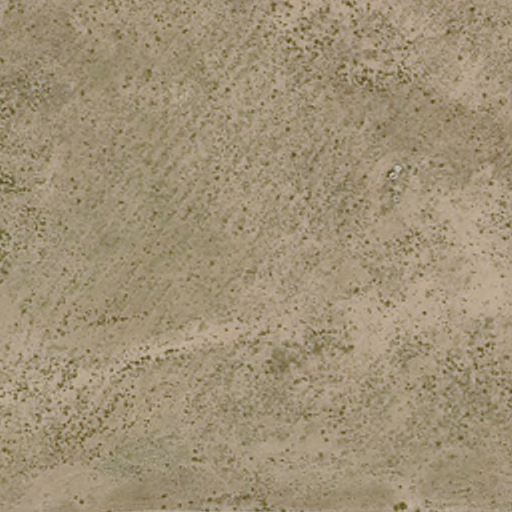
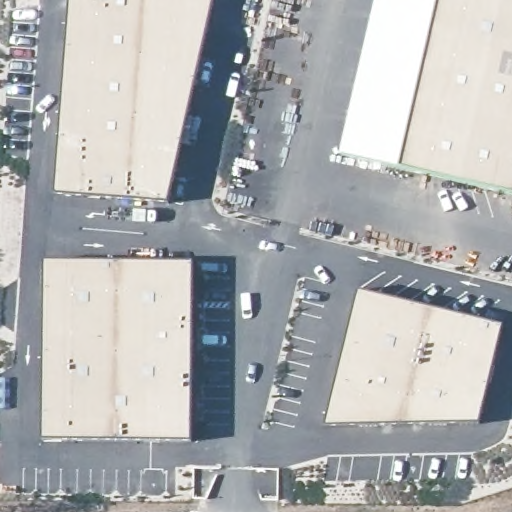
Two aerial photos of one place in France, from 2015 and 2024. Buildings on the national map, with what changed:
new [(167,195),(50,186),(62,0),(209,0),(167,195)]
new [(341,154),(377,0),(512,0),(512,192),(341,154)]
new [(43,260),(193,261),(191,441),(144,442),(41,441),(43,260)]
new [(345,338),(357,289),(503,325),(480,423),(326,425),(345,338)]

